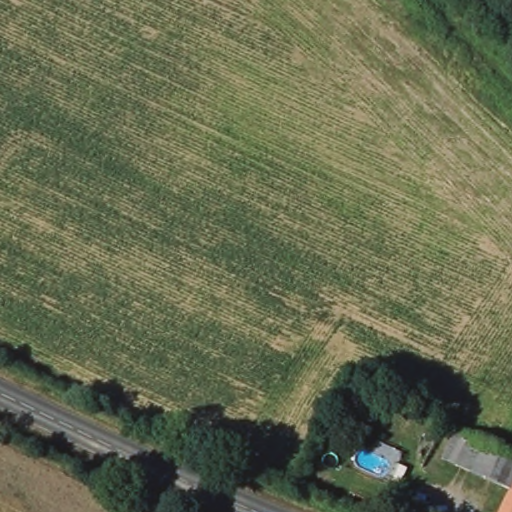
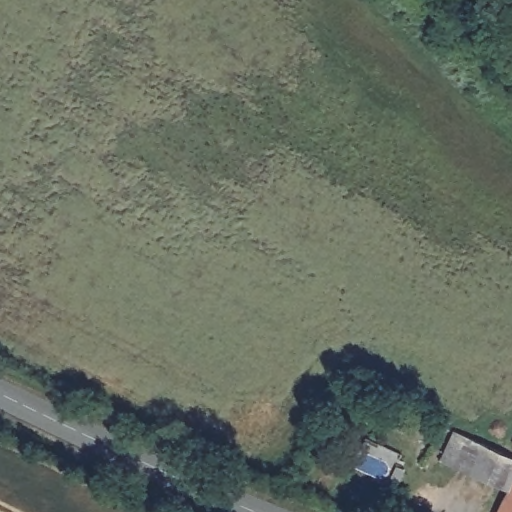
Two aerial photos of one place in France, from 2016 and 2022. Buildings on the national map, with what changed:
unchanged [(460,460),(450,455),(451,446),(438,440),(445,423),(452,426),(511,453),(512,453),(512,493),(458,469),(460,460)]
unchanged [(512,452),(512,453),(511,453),(512,452)]
unchanged [(512,512),(511,512),(512,510),(512,512)]

